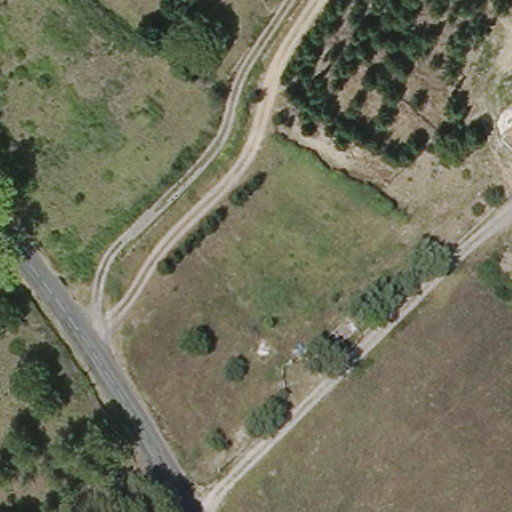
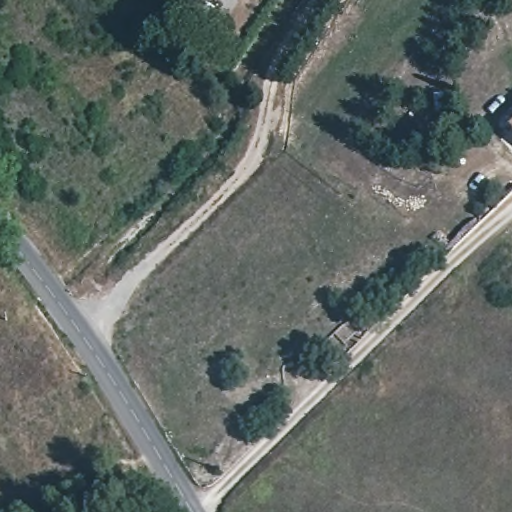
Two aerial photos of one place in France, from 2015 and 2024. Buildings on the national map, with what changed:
unchanged [(511,134),(512,133),(512,135),(511,134)]

